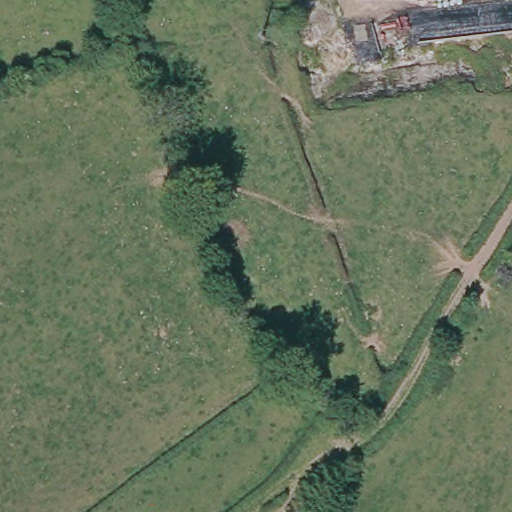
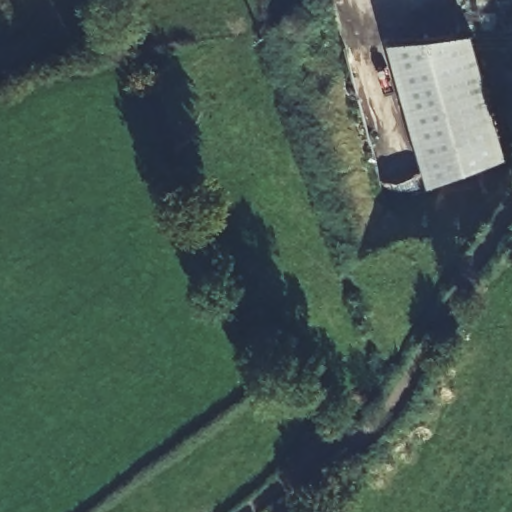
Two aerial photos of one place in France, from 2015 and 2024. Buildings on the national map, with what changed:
new [(473,32),(508,165),(447,181),(443,187),(427,191),(390,48),(432,37),(473,32)]

